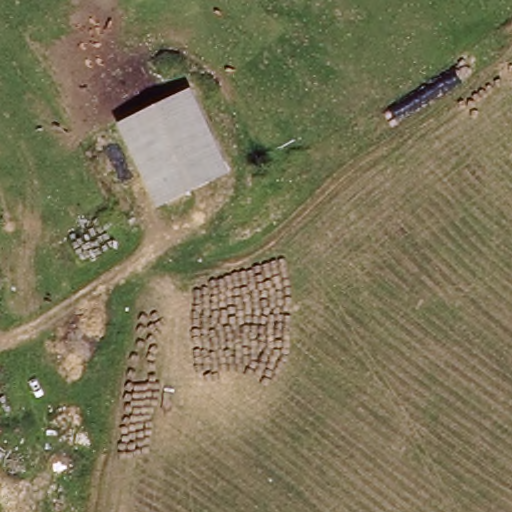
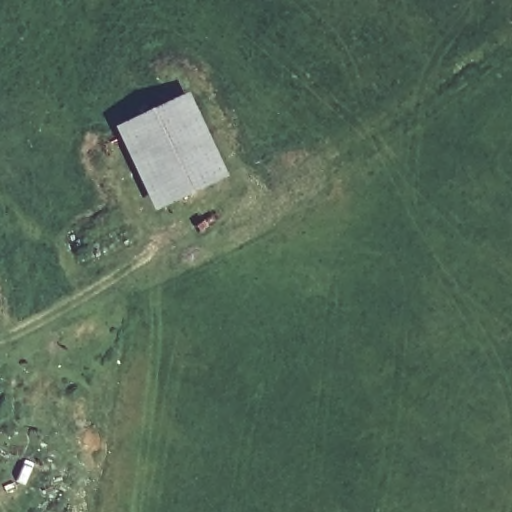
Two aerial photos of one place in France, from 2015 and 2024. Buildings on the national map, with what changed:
unchanged [(197,90),(237,168),(168,200),(127,127),(197,90)]

